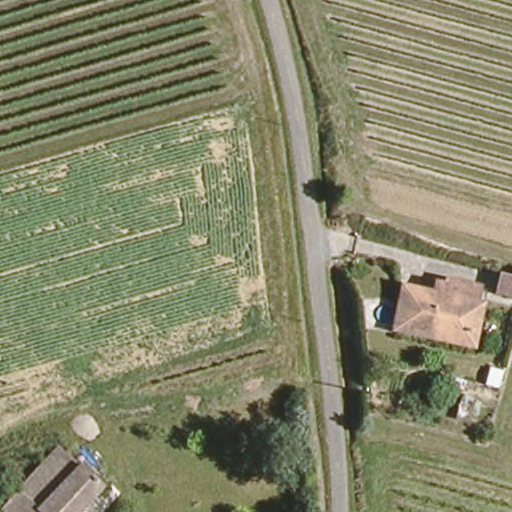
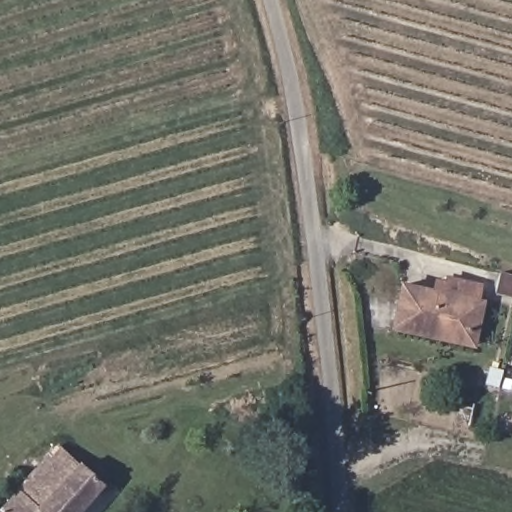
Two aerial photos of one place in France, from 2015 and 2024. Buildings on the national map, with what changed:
unchanged [(481,282),(486,263),(512,271),(512,279),(509,290),(481,282)]
unchanged [(468,345),(425,336),(398,330),(406,286),(469,300),(477,302),(468,345)]
unchanged [(77,512),(0,512),(0,504),(56,446),(79,468),(84,462),(105,482),(77,512)]

